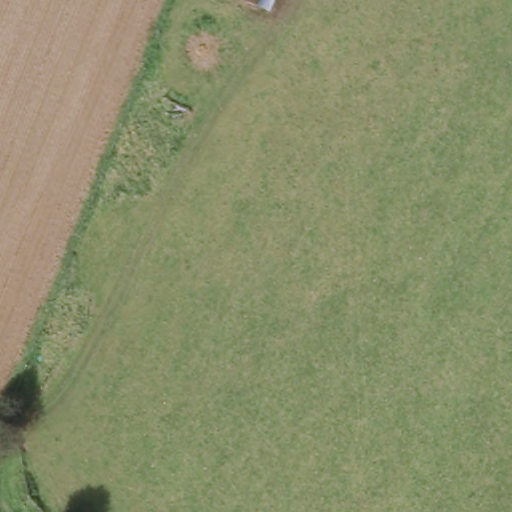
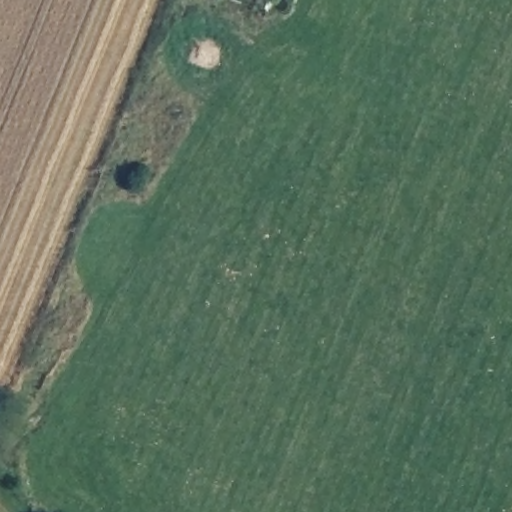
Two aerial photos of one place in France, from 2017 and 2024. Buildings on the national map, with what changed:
unchanged [(244,0),(272,0),(268,10),(244,0)]

